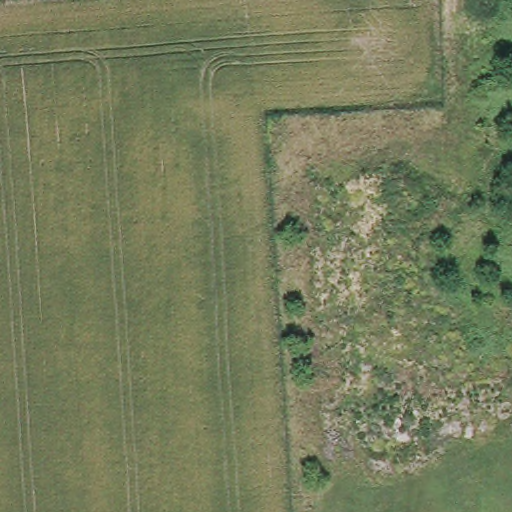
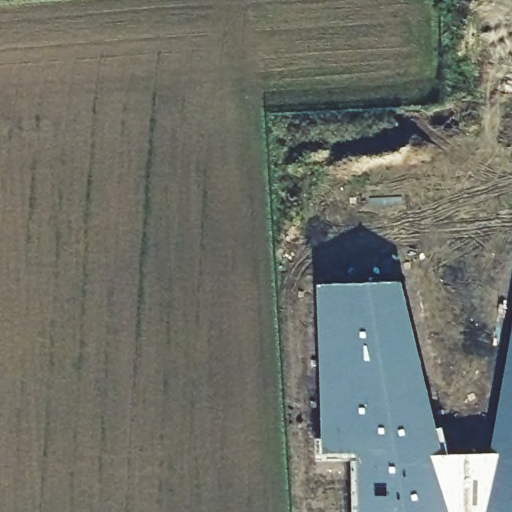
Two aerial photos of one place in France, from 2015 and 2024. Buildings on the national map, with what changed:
new [(404,279),(449,450),(492,450),(512,334),(512,512),(351,512),(350,458),(317,460),(316,283),(404,279)]

